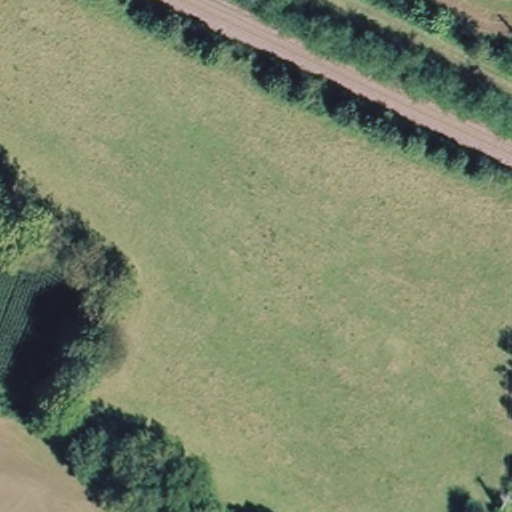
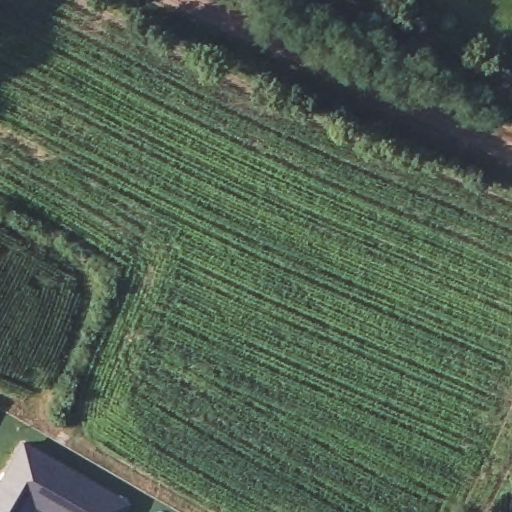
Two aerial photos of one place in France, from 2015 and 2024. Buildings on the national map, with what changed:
new [(58,457),(132,501),(125,512),(44,512),(35,507),(31,512),(0,512),(0,479),(23,439),(58,457)]

